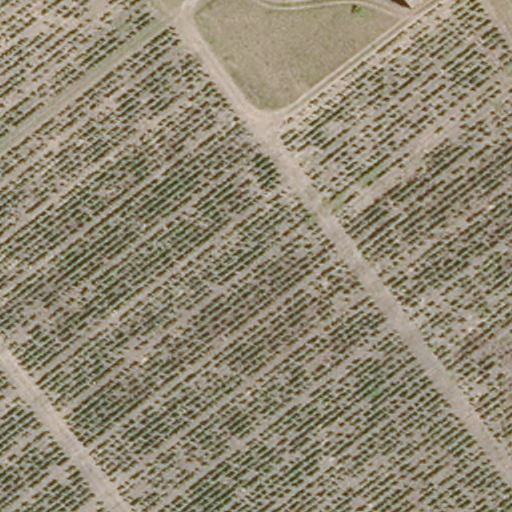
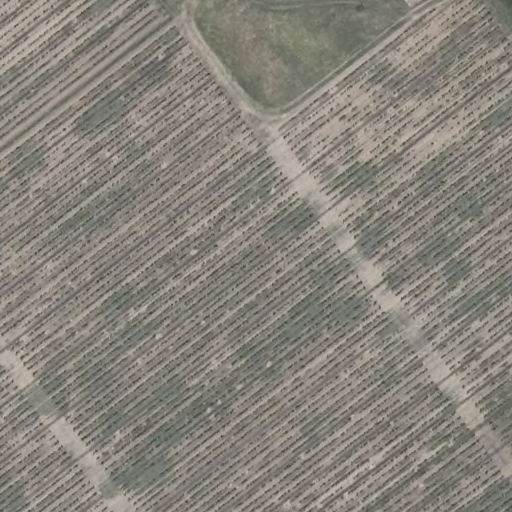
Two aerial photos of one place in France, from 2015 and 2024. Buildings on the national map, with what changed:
unchanged [(407,0),(419,0),(410,5),(407,0)]

